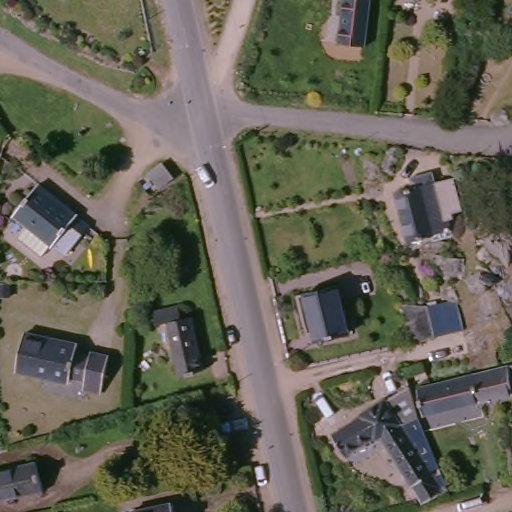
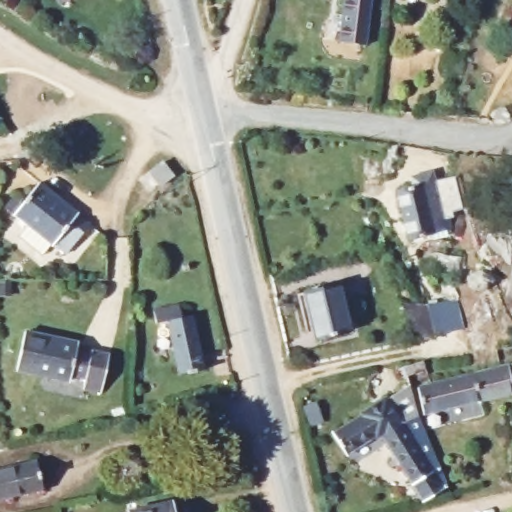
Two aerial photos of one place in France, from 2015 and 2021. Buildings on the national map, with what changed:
unchanged [(344,0),(372,0),(367,45),(339,42),(344,0)]
unchanged [(173,178),(159,188),(149,173),(163,163),(173,178)]
unchanged [(444,231),(442,232),(443,237),(428,241),(426,235),(405,240),(393,190),(409,186),(407,177),(428,172),(430,181),(453,175),(456,190),(437,195),(444,231)]
unchanged [(88,225),(64,255),(53,245),(51,247),(13,216),(39,184),(76,214),(75,215),(88,225)]
unchanged [(350,332),(316,339),(305,293),(339,285),(350,332)]
unchanged [(455,331),(439,335),(440,338),(418,343),(409,304),(432,304),(448,301),(455,331)]
unchanged [(209,374),(184,380),(172,328),(161,330),(158,315),(184,309),(187,323),(197,320),(209,374)]
unchanged [(114,358),(105,394),(87,390),(90,379),(76,375),(74,384),(20,370),(29,334),(83,347),(82,349),(114,358)]
unchanged [(402,369),(408,368),(408,367),(428,362),(431,370),(412,377),(406,379),(402,369)]
unchanged [(423,387),(512,366),(512,395),(429,415),(423,387)]
unchanged [(453,488),(428,503),(386,436),(382,439),(380,436),(351,454),(338,434),(366,416),(364,414),(390,397),(392,399),(414,384),(415,384),(422,414),(453,488)]
unchanged [(0,502),(0,471),(41,462),(48,491),(0,502)]
unchanged [(175,512),(129,512),(173,502),(175,512)]

